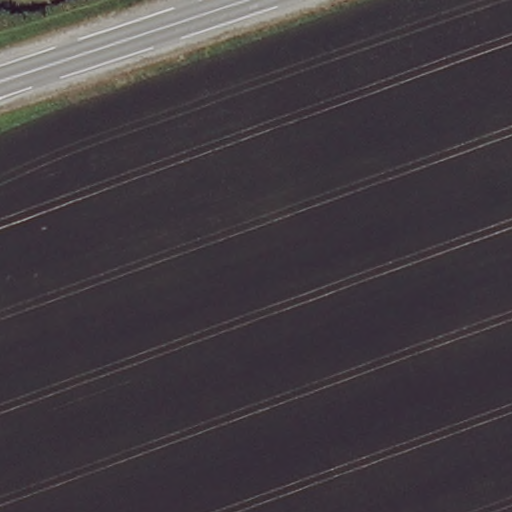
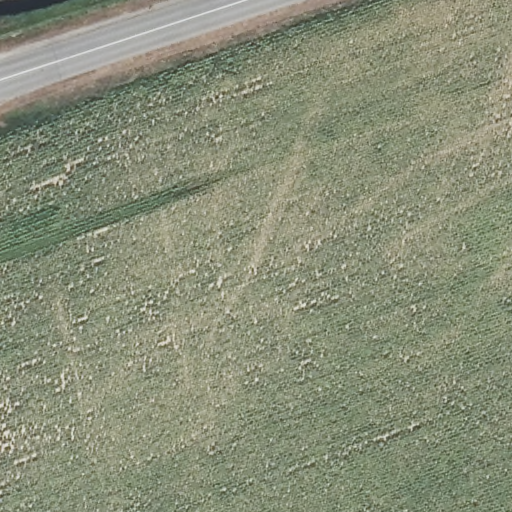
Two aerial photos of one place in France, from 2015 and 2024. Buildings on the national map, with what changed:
[]

